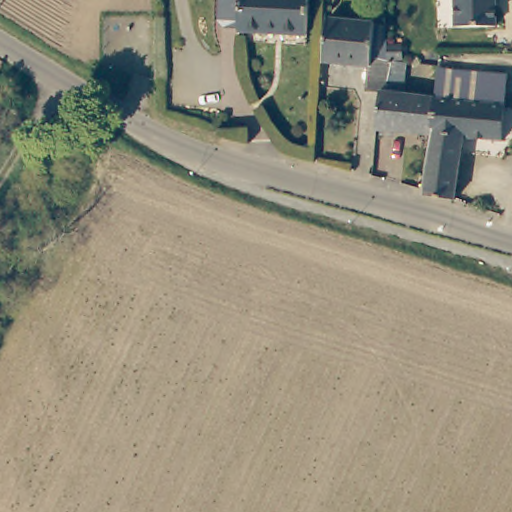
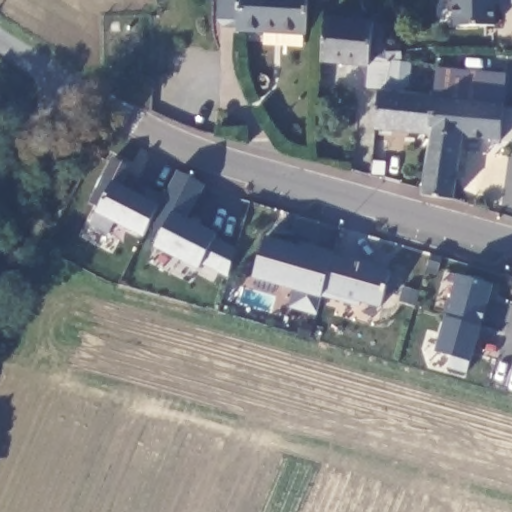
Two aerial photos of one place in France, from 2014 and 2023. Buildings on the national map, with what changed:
unchanged [(260,30),(260,35),(235,32),(235,29),(220,27),(215,22),(216,0),(308,0),(307,33),(260,30)]
unchanged [(457,27),(451,22),(450,1),(443,1),(443,0),(495,0),(496,26),(457,27)]
unchanged [(325,20),(383,29),(383,60),(389,61),(385,94),(375,93),(363,91),(365,69),(319,62),(325,20)]
unchanged [(375,93),(385,94),(389,61),(403,62),(400,97),(434,100),(428,137),(374,130),(375,93)]
unchanged [(428,137),(434,100),(436,66),(512,74),(512,145),(466,141),(455,205),(421,199),(432,139),(428,137)]
new [(225,275),(202,265),(200,270),(155,247),(162,232),(150,226),(144,236),(115,222),(109,235),(90,226),(100,208),(89,202),(112,156),(133,167),(122,186),(145,196),(149,187),(165,195),(178,170),(206,185),(190,219),(217,233),(215,237),(236,249),(225,275)]
new [(332,256),(353,260),(390,270),(381,307),(360,302),(358,307),(321,297),(316,316),(290,307),(293,291),(254,278),(266,236),(332,256)]
new [(471,362),(467,374),(449,368),(453,357),(436,352),(445,317),(458,274),(494,284),(471,362)]

